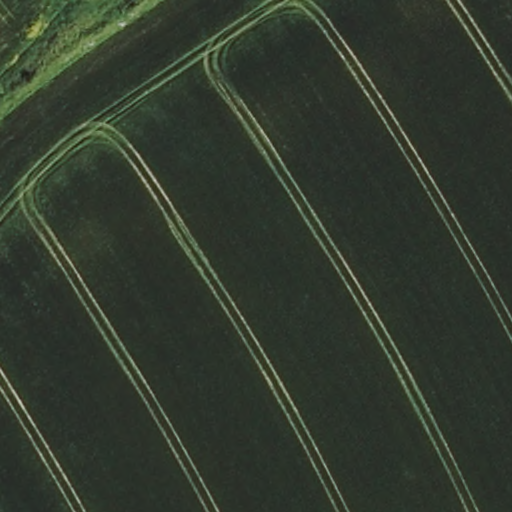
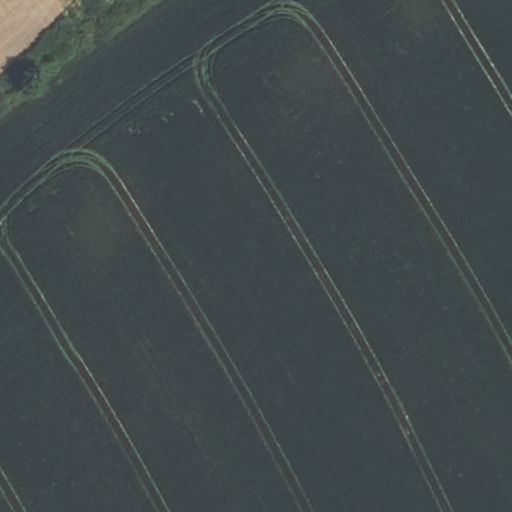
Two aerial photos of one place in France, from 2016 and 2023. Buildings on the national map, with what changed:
[]

